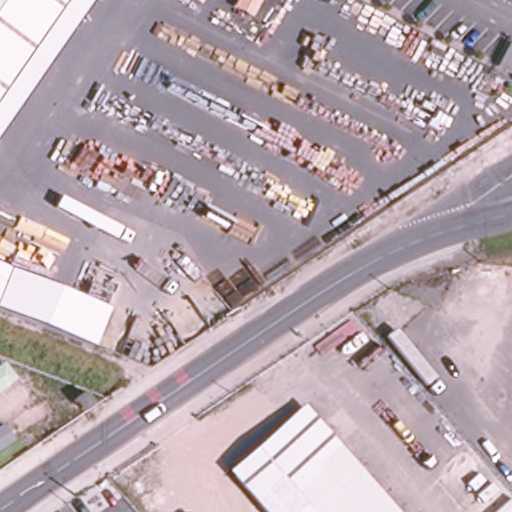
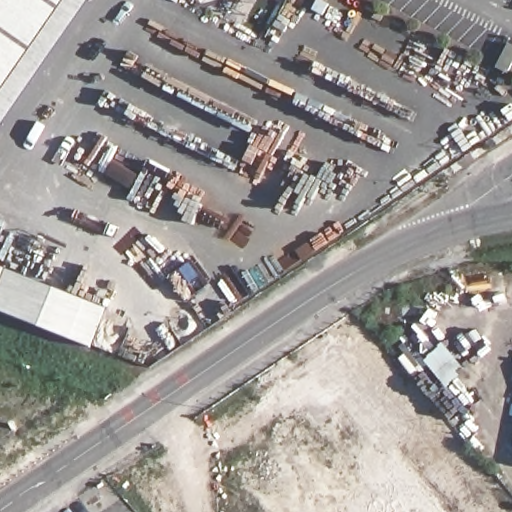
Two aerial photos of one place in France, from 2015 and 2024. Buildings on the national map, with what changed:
unchanged [(0,0),(92,0),(0,132),(0,0)]
unchanged [(94,347),(0,309),(0,261),(112,298),(94,347)]
unchanged [(90,411),(82,401),(92,392),(100,401),(90,411)]
demolished [(235,474),(308,412),(326,433),(340,451),(391,512),(268,512),(235,474)]

